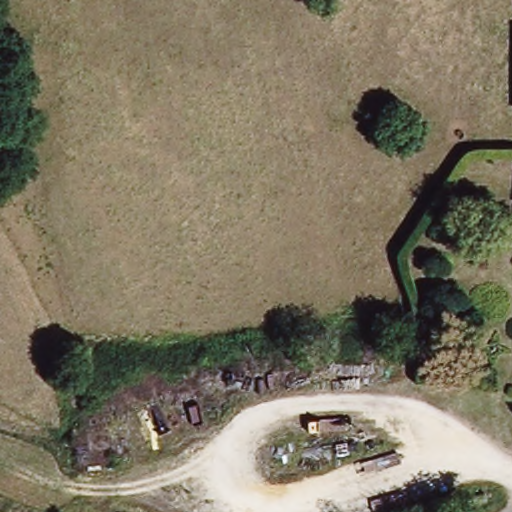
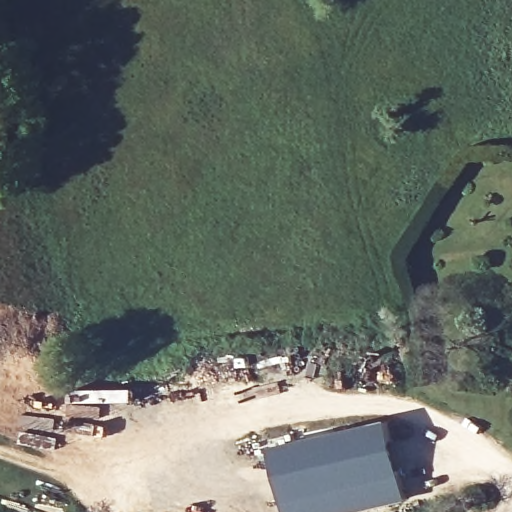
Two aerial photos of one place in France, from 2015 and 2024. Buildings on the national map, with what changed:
new [(357,512),(285,512),(268,447),(387,421),(405,502),(357,512)]

